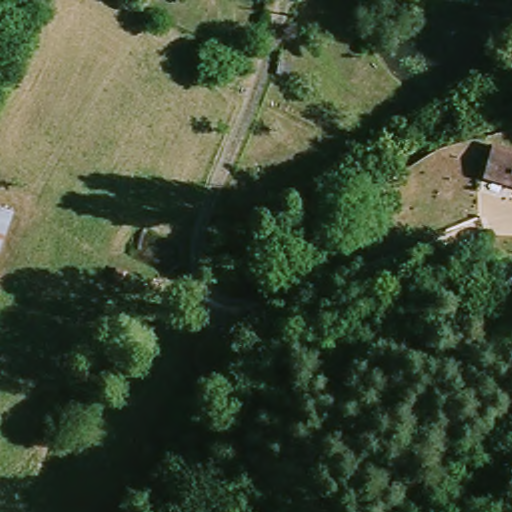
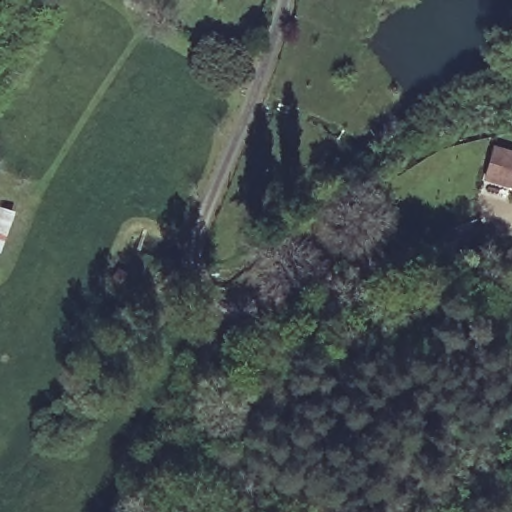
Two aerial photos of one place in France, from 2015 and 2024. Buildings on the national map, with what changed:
unchanged [(512,155),(512,193),(482,184),(492,150),(512,155)]
unchanged [(0,212),(12,215),(0,251),(0,212)]

